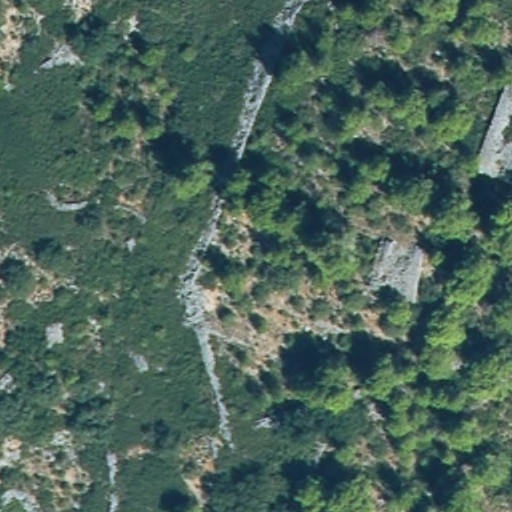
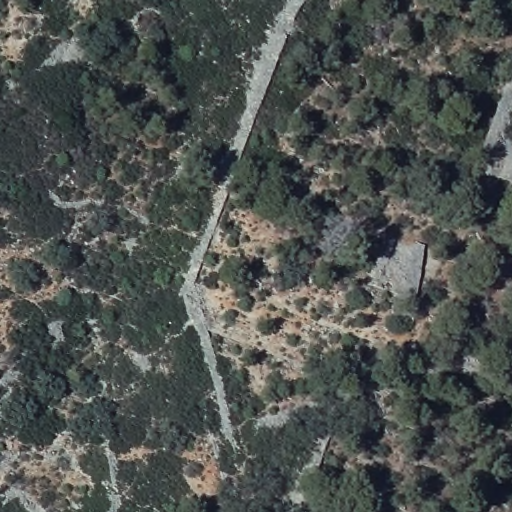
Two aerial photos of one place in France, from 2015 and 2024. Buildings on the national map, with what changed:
unchanged [(415,244),(404,285),(367,274),(379,237),(415,244)]

